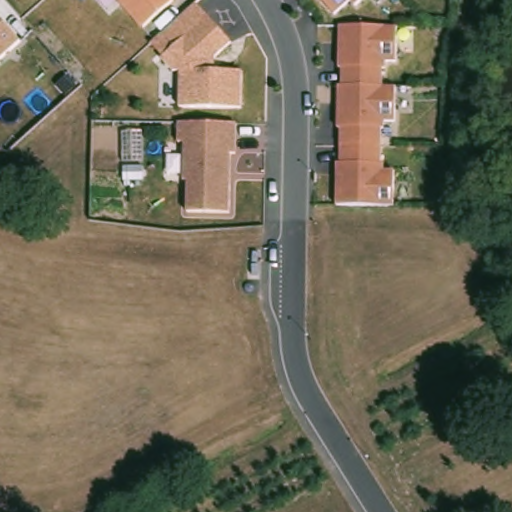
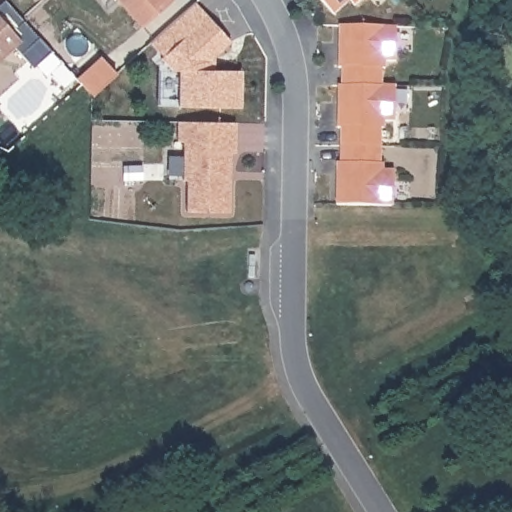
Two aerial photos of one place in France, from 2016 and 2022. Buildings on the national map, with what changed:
unchanged [(176,11),(146,38),(113,0),(165,0),(176,11)]
unchanged [(319,0),(380,0),(360,18),(355,13),(339,27),(317,2),(319,0)]
unchanged [(173,73),(160,56),(161,54),(148,42),(195,2),(231,42),(216,56),(216,69),(243,70),(242,109),(177,107),(179,73),(173,73)]
unchanged [(0,72),(0,27),(23,52),(0,72)]
unchanged [(398,40),(398,76),(387,76),(387,79),(387,83),(384,83),(384,100),(398,100),(398,136),(387,136),(387,142),(384,142),(384,160),(384,177),(387,177),(387,184),(398,184),(397,220),(359,219),(340,219),(341,176),(344,176),(345,159),(345,142),(342,142),(343,99),(347,99),(347,82),(344,82),(344,78),(345,39),(398,40)]
unchanged [(236,153),(232,153),(230,212),(185,210),(186,180),(181,180),(182,142),(176,142),(177,120),(238,121),(236,153)]

